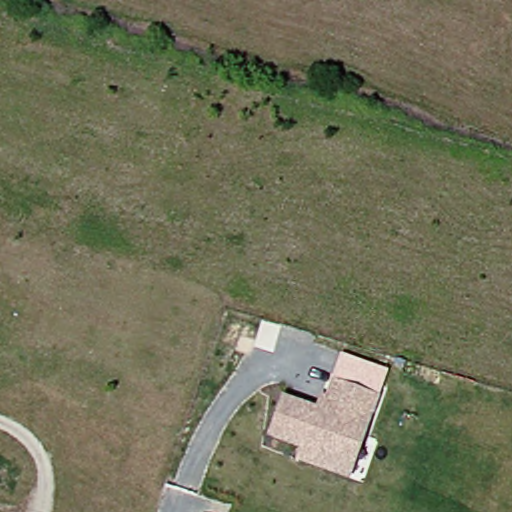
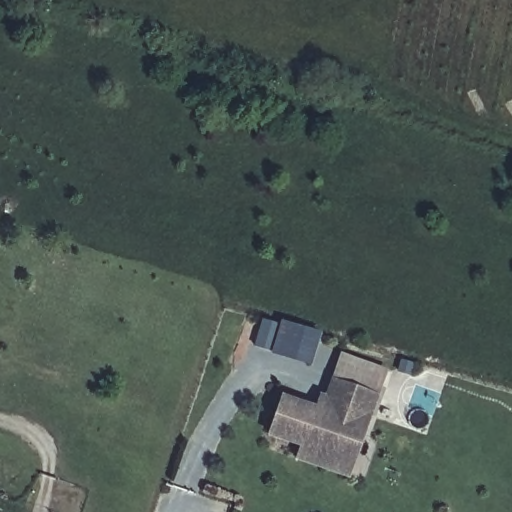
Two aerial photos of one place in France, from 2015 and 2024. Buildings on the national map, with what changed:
new [(263,319),(279,325),(280,320),(322,333),(312,365),(254,348),(263,319)]
unchanged [(320,391),(327,394),(334,375),(383,394),(353,482),(296,463),(301,447),(267,436),(281,394),(316,405),(320,391)]

